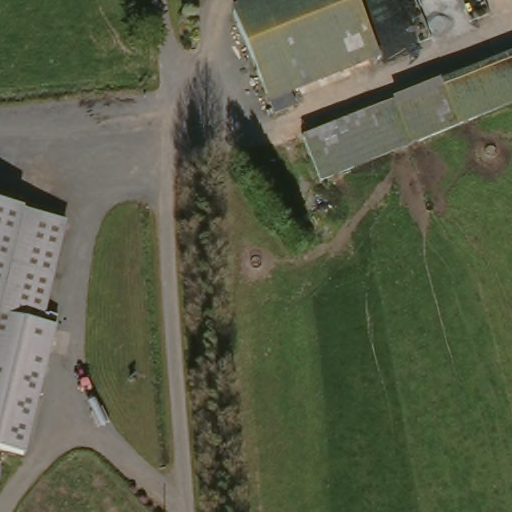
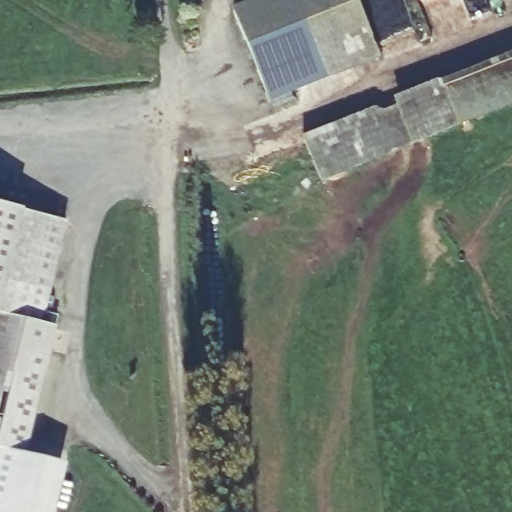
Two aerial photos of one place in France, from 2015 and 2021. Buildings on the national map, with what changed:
unchanged [(384,53),(274,98),(234,9),(256,0),(362,0),(384,53)]
unchanged [(512,50),(512,104),(464,124),(445,77),(512,50)]
unchanged [(307,134),(445,77),(464,124),(325,182),(307,134)]
unchanged [(56,313),(24,452),(0,447),(0,204),(63,219),(41,310),(56,313)]
new [(68,465),(56,512),(0,512),(0,447),(24,452),(68,465)]

